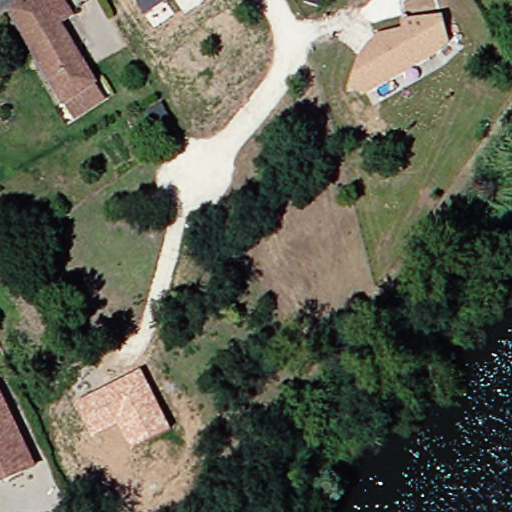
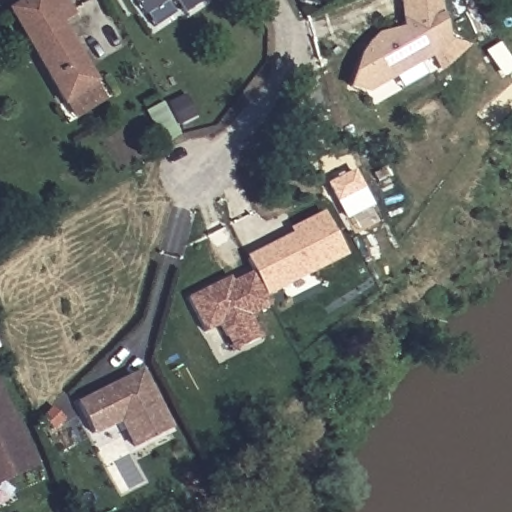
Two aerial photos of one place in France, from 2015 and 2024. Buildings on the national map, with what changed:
unchanged [(20,0),(59,0),(77,29),(65,36),(92,82),(58,104),(4,11),(20,0)]
new [(167,1),(175,12),(154,26),(136,0),(170,0),(167,1)]
new [(184,12),(176,0),(203,0),(184,12)]
new [(443,15),(401,18),(399,0),(439,0),(443,15)]
unchanged [(401,18),(446,15),(453,49),(371,96),(347,92),(359,51),(376,32),(402,30),(401,18)]
new [(182,136),(164,146),(146,112),(183,92),(196,116),(177,126),(182,136)]
new [(345,219),(326,185),(354,170),(373,205),(345,219)]
new [(264,297),(252,272),(246,255),(293,232),(290,226),(325,209),(348,256),(264,297)]
new [(219,327),(204,334),(187,298),(227,279),(229,283),(252,272),(269,307),(249,317),(260,338),(231,352),(219,327)]
unchanged [(141,371),(170,431),(131,450),(118,425),(92,437),(78,402),(141,371)]
unchanged [(31,472),(0,488),(0,408),(31,472)]

